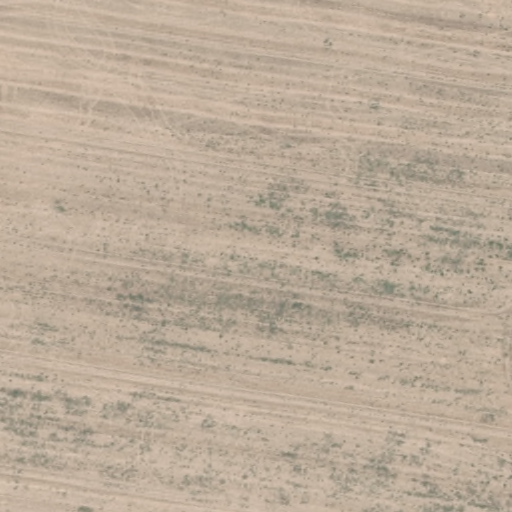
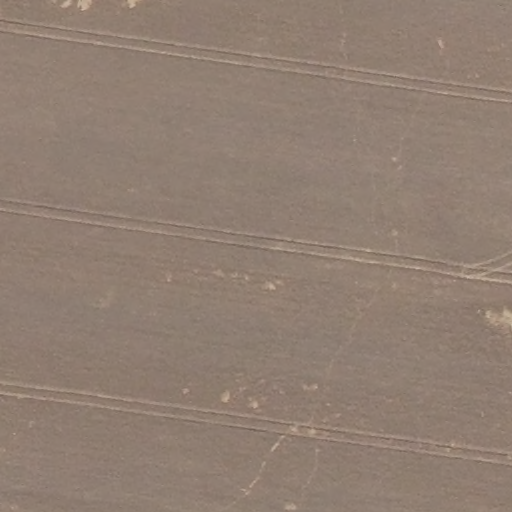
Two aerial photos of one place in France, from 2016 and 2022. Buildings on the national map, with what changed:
[]

